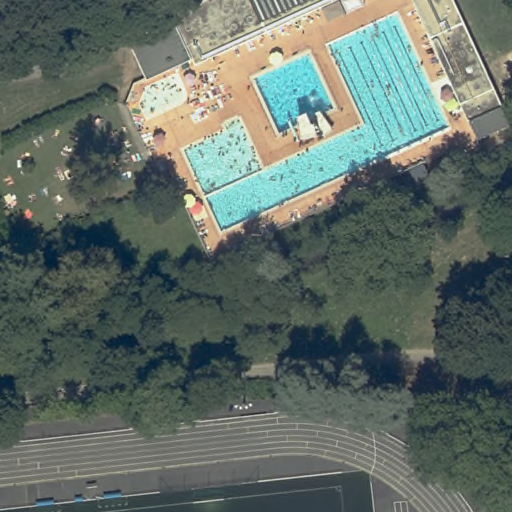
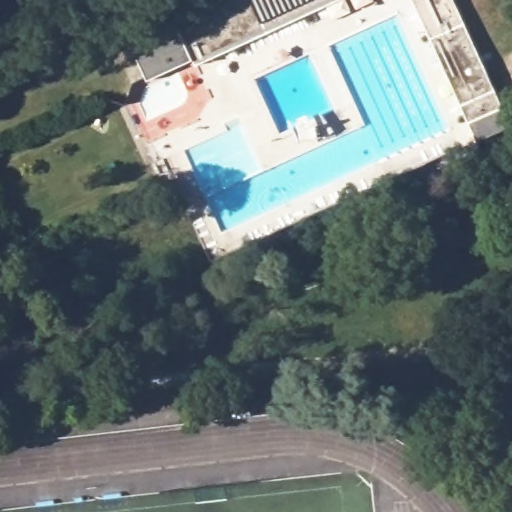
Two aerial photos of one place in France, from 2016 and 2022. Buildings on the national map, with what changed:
unchanged [(196,62),(157,80),(138,36),(177,19),(175,15),(206,0),(341,0),(198,66),(196,62)]
unchanged [(507,105),(512,114),(512,125),(485,139),(476,121),(475,121),(417,0),(460,0),(508,105),(507,105)]

